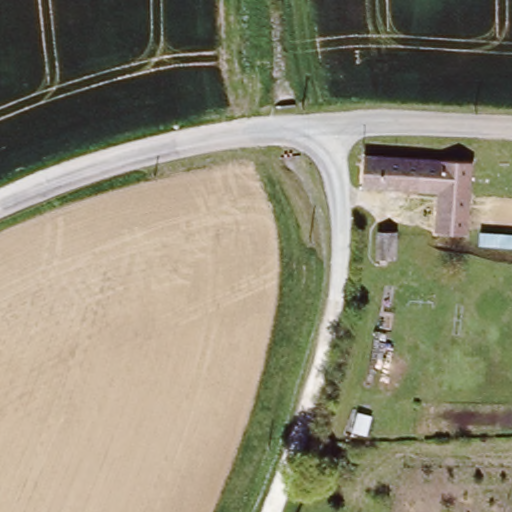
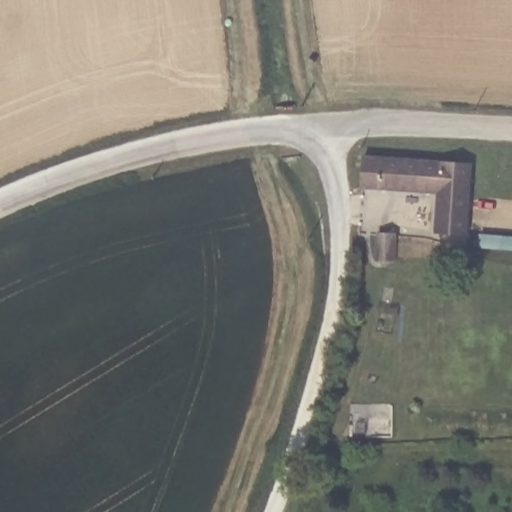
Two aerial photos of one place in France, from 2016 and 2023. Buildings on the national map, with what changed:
unchanged [(441,230),(439,192),(366,193),(364,162),(466,158),(469,204),(470,229),(444,230),(441,230)]
unchanged [(378,240),(399,239),(399,258),(379,259),(378,240)]
unchanged [(350,431),(356,412),(373,415),(366,436),(350,431)]

